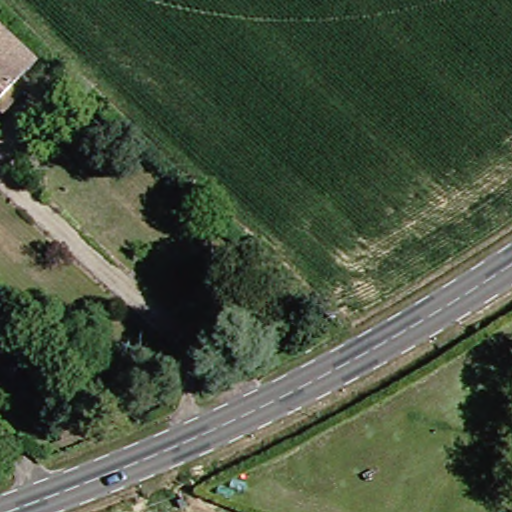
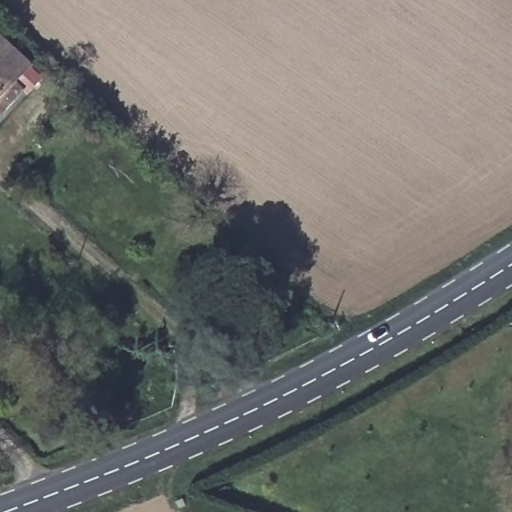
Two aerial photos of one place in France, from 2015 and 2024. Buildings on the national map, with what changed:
unchanged [(25,79),(37,90),(12,116),(0,105),(0,25),(0,24),(39,61),(25,79)]

